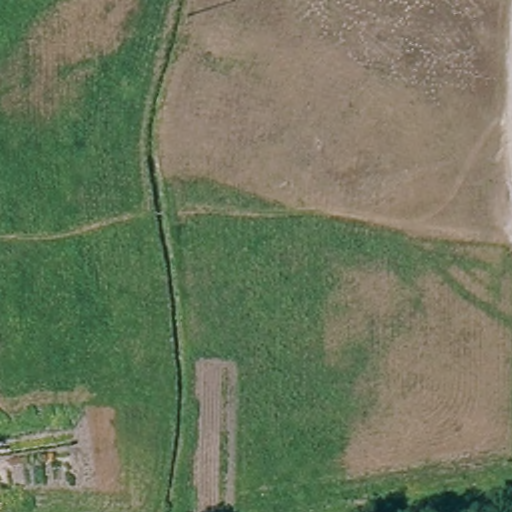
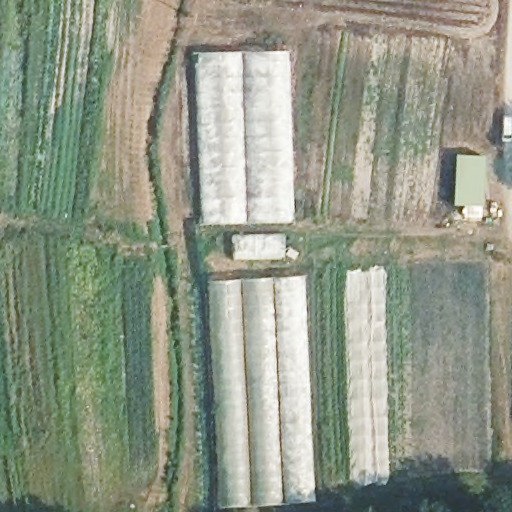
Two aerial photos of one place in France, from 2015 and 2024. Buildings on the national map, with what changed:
new [(199,224),(192,53),(283,51),(290,222),(199,224)]
new [(463,217),(463,206),(455,206),(456,155),(484,156),(482,218),(463,217)]
new [(312,501),(216,507),(207,282),(302,275),(312,501)]

